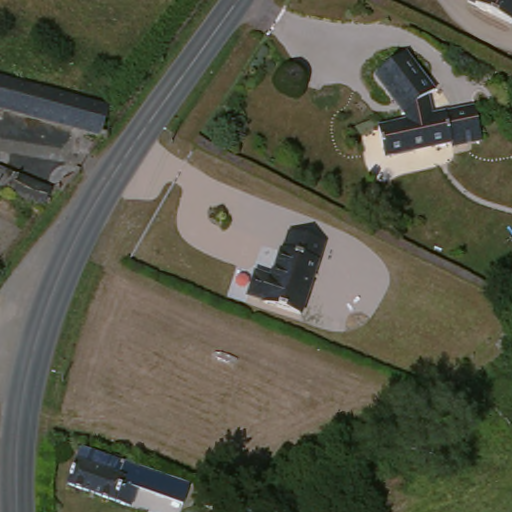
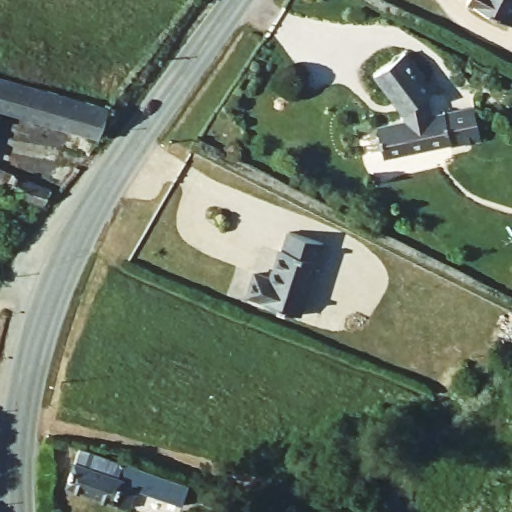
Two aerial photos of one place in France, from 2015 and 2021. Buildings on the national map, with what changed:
unchanged [(506,29),(461,7),(465,0),(512,0),(512,16),(506,29)]
unchanged [(410,124),(407,112),(378,81),(407,57),(438,96),(431,107),(434,119),(476,111),(482,148),(455,151),(454,149),(438,150),(391,155),(384,127),(394,126),(410,124)]
unchanged [(0,80),(56,95),(107,108),(99,132),(97,139),(0,114),(0,80)]
unchanged [(34,203),(17,197),(0,189),(0,170),(38,185),(56,161),(71,167),(54,187),(44,182),(34,203)]
unchanged [(263,306),(264,304),(246,299),(253,276),(269,281),(278,252),(280,251),(286,233),(320,242),(299,316),(263,306)]
unchanged [(118,468),(113,481),(124,485),(122,490),(133,493),(131,497),(126,511),(92,500),(83,497),(63,490),(74,454),(118,468)]
unchanged [(191,493),(184,512),(133,493),(122,490),(124,485),(113,481),(118,468),(191,493)]
unchanged [(253,502),(247,512),(221,512),(216,509),(221,500),(234,507),(239,496),(253,502)]

